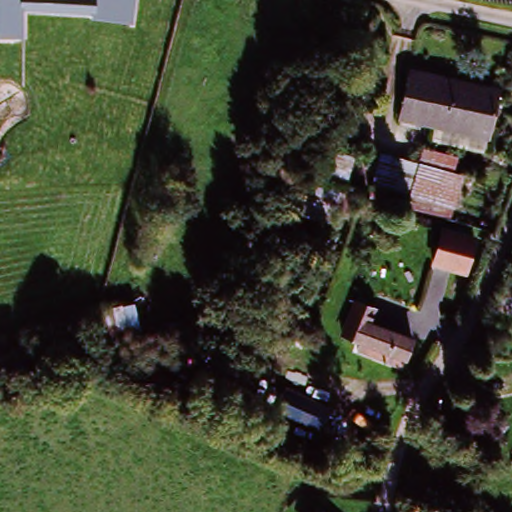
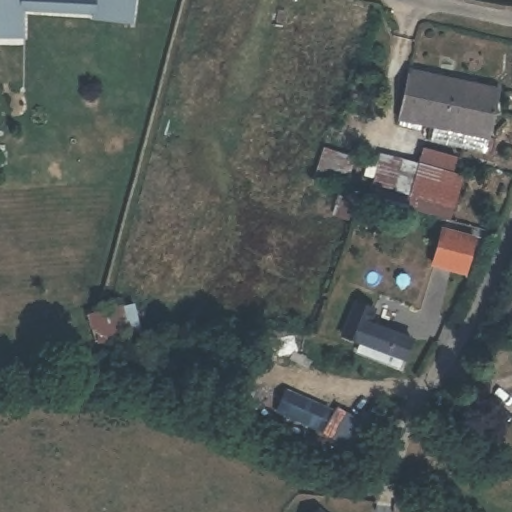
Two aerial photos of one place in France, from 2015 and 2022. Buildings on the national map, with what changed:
unchanged [(92,0),(93,0),(135,0),(132,23),(92,20),(92,14),(40,10),(22,9),(22,38),(0,37),(0,0),(86,0),(92,0)]
unchanged [(405,119),(417,70),(506,92),(494,142),(405,119)]
unchanged [(473,164),(453,212),(405,197),(422,148),(473,164)]
unchanged [(468,278),(426,267),(436,228),(477,239),(468,278)]
unchanged [(140,331),(95,342),(87,316),(133,304),(140,331)]
unchanged [(373,353),(358,346),(366,322),(383,328),(421,341),(415,355),(410,371),(373,353)]

